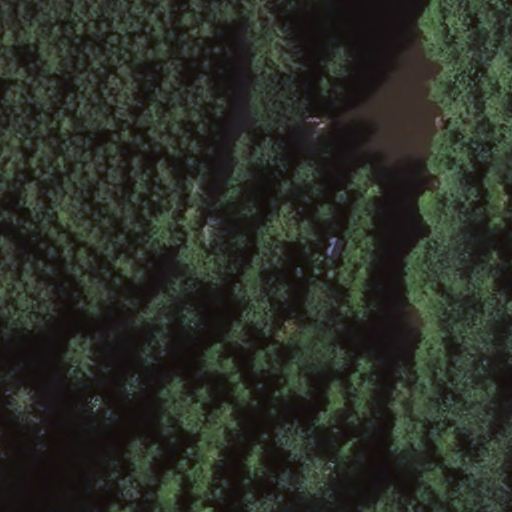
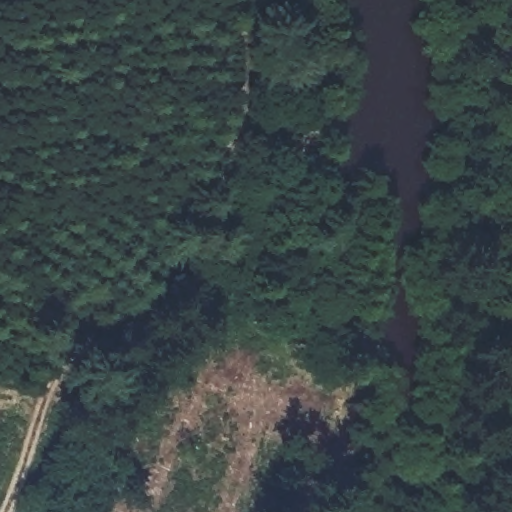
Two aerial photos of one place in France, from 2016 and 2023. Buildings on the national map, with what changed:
unchanged [(342,249),(332,276),(315,268),(324,242),(342,249)]

